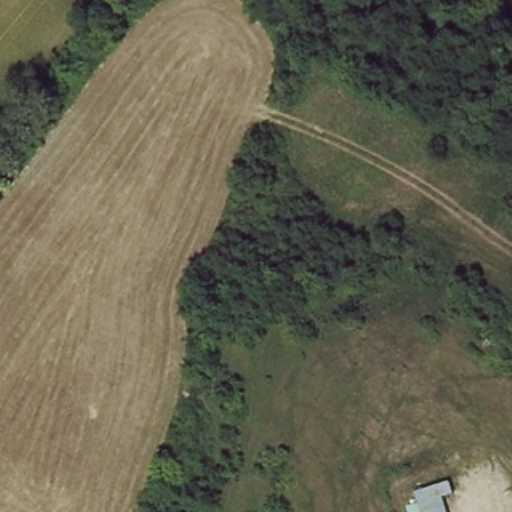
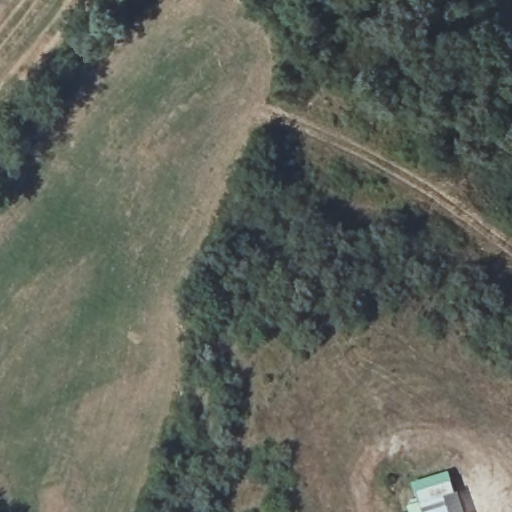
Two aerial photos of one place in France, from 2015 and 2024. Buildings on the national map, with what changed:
unchanged [(422,497),(445,489),(450,512),(426,512),(422,497)]

